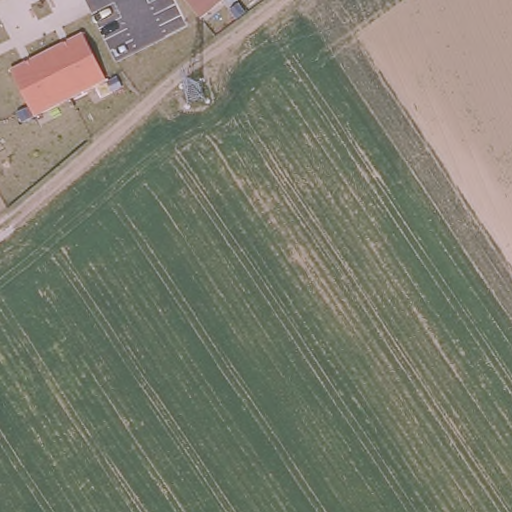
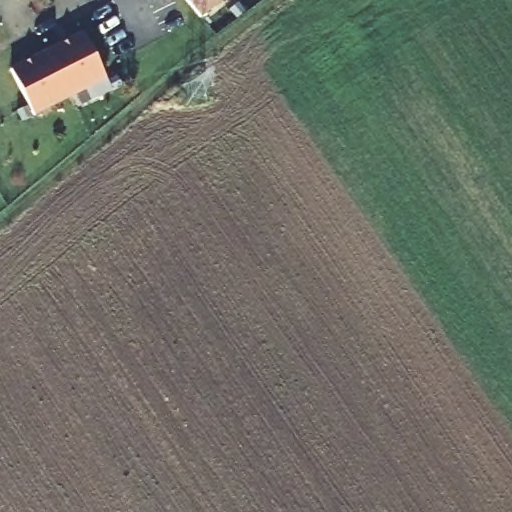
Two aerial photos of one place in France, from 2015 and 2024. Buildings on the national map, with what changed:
unchanged [(195,12),(185,0),(211,0),(195,12)]
unchanged [(81,32),(103,79),(28,115),(4,68),(81,32)]

